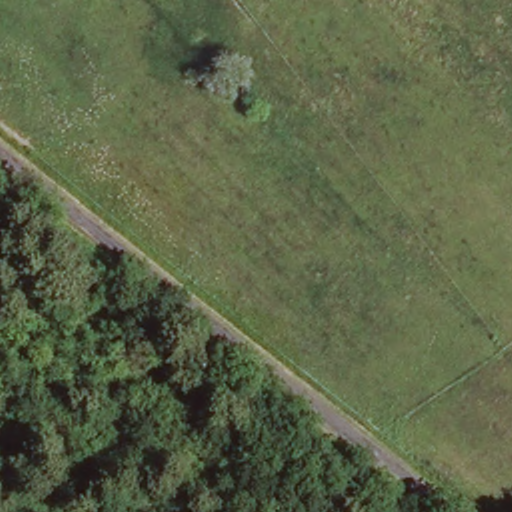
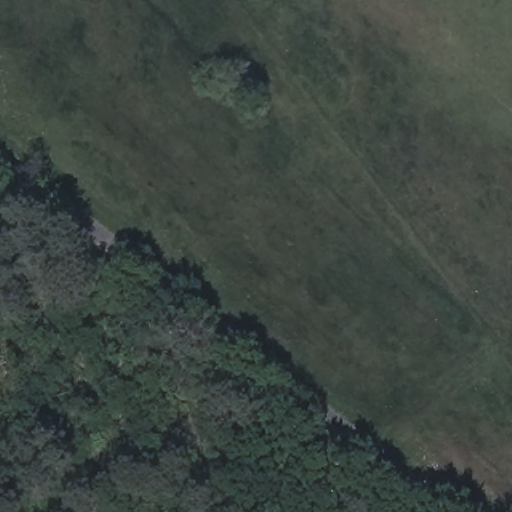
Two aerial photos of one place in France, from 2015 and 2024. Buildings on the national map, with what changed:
[]

